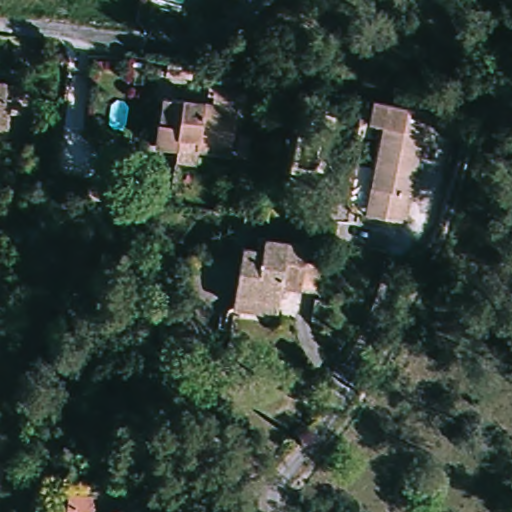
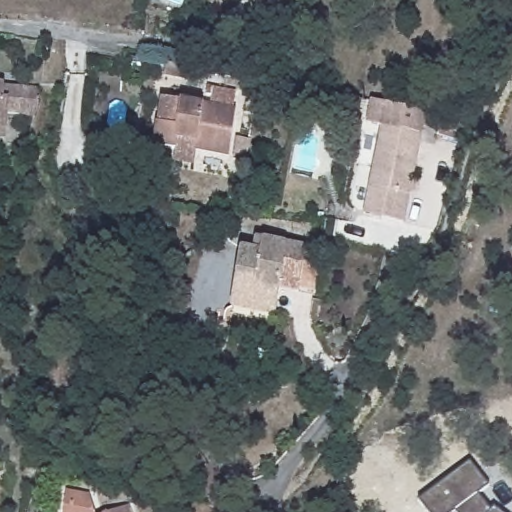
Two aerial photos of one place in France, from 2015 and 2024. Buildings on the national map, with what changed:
unchanged [(169,169),(170,161),(150,157),(159,105),(203,112),(206,96),(231,100),(229,114),(233,115),(225,160),(195,155),(192,172),(169,169)]
unchanged [(0,136),(0,98),(3,98),(2,129),(1,137),(0,136)]
unchanged [(370,202),(383,141),(369,138),(374,117),(424,126),(403,227),(383,222),(367,219),(370,202)]
unchanged [(86,186),(84,197),(82,210),(63,206),(67,182),(86,186)]
unchanged [(261,237),(309,247),(301,285),(281,281),(286,258),(258,252),(261,237)]
unchanged [(258,252),(286,258),(281,281),(275,314),(234,306),(245,250),(258,252)]
new [(470,463),(490,487),(479,495),(492,511),(494,508),(499,512),(426,512),(420,504),(470,463)]
unchanged [(82,503),(86,512),(57,512),(60,498),(82,503)]
unchanged [(136,512),(102,512),(130,499),(136,512)]
unchanged [(155,512),(150,512),(155,510),(155,512)]

